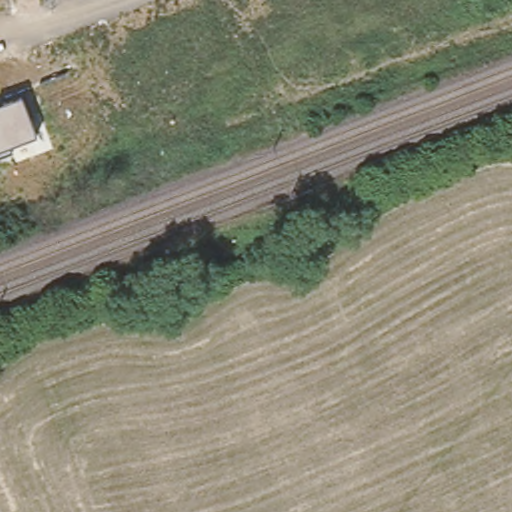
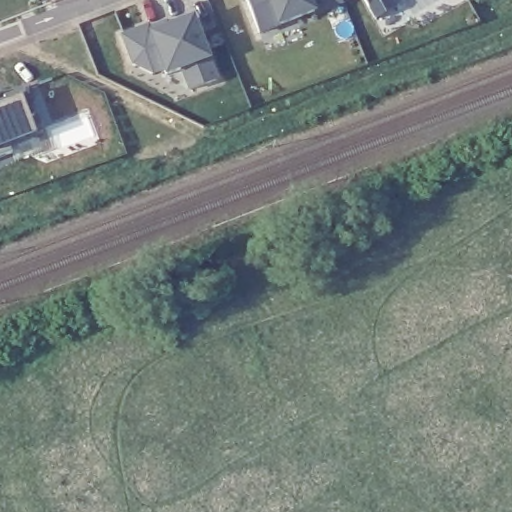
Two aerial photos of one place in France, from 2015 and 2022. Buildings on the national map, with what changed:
new [(340,0),(342,5),(259,35),(246,0),(340,0)]
new [(395,12),(375,22),(363,0),(392,0),(390,1),(395,12)]
new [(192,20),(217,82),(190,92),(182,70),(167,76),(163,71),(153,75),(134,67),(122,39),(148,26),(151,36),(192,20)]
unchanged [(23,94),(38,134),(11,144),(15,151),(0,156),(0,102),(23,94)]

